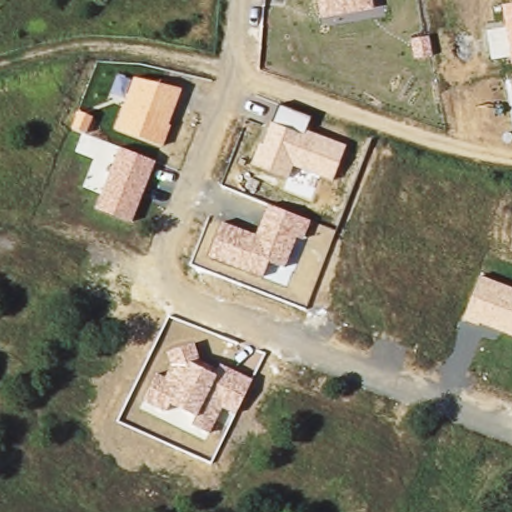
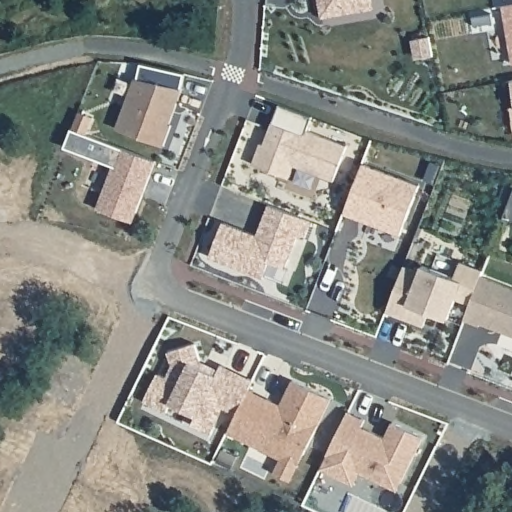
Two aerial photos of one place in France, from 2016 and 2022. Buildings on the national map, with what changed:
unchanged [(376,7),(322,17),(319,0),(374,0),(376,7)]
unchanged [(512,60),(502,5),(512,3),(512,60)]
unchanged [(183,87),(169,124),(172,125),(163,146),(115,129),(136,77),(183,87)]
unchanged [(312,117),(306,130),(347,145),(333,182),(294,166),(290,177),(252,163),(261,141),(263,143),(278,105),(312,117)]
unchanged [(157,161),(132,224),(95,209),(121,146),(157,161)]
new [(345,214),(364,162),(419,184),(400,234),(345,214)]
new [(512,193),(512,226),(494,223),(507,192),(512,193)]
unchanged [(312,219),(304,240),(298,237),(285,268),(269,262),(264,276),(208,257),(222,222),(255,233),(268,203),(312,219)]
new [(470,303),(456,298),(449,318),(430,310),(424,326),(386,311),(405,265),(420,271),(422,264),(455,277),(460,262),(483,270),(480,275),(470,303)]
unchanged [(512,335),(481,324),(480,326),(464,320),(480,275),(512,286),(512,335)]
unchanged [(195,341),(200,359),(219,369),(223,364),(253,378),(237,414),(222,408),(211,432),(190,423),(194,414),(170,403),(167,410),(145,399),(158,372),(165,376),(172,364),(167,350),(195,341)]
new [(248,389),(280,404),(291,380),(330,399),(289,481),(274,474),(281,458),(227,432),(237,414),(248,389)]
new [(370,483),(349,473),(342,485),(309,468),(338,412),(355,421),(351,427),(359,431),(374,439),(382,423),(412,438),(389,484),(385,492),(370,483)]

